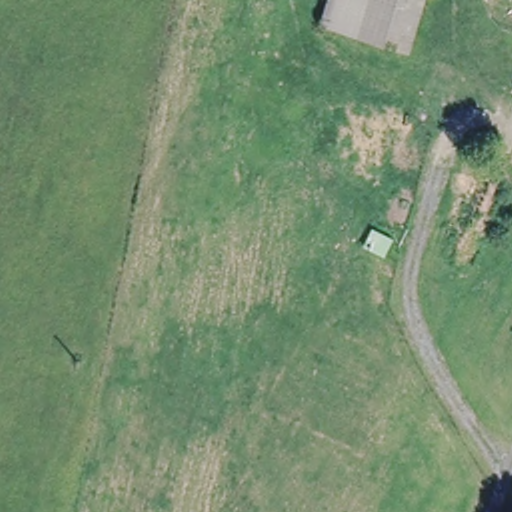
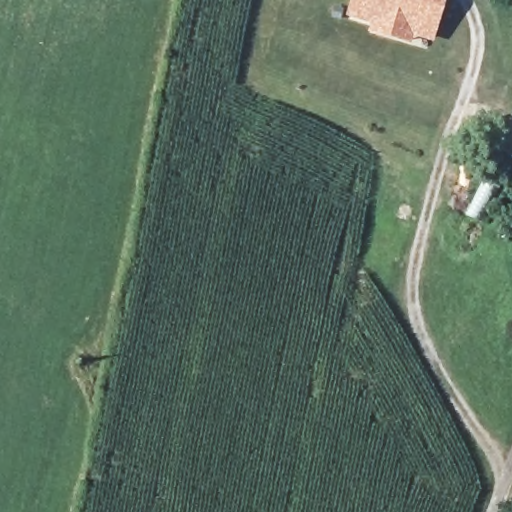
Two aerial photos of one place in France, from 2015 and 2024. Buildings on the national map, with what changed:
new [(412,36),(410,46),(367,33),(369,25),(345,17),(350,0),(445,0),(432,43),(412,36)]
demolished [(510,88),(512,83),(512,88),(510,88)]

